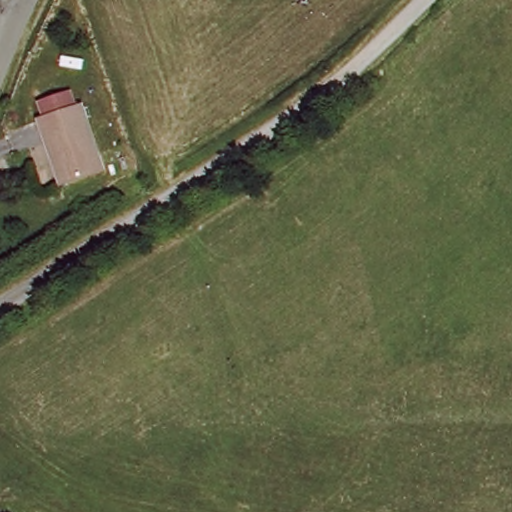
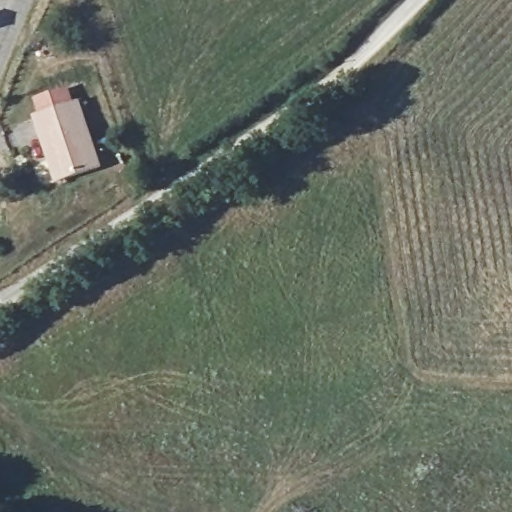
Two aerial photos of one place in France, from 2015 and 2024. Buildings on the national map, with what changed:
unchanged [(60,179),(37,112),(80,98),(103,163),(60,179)]

